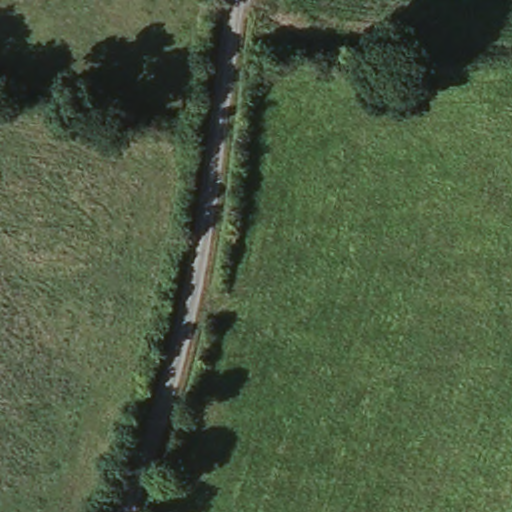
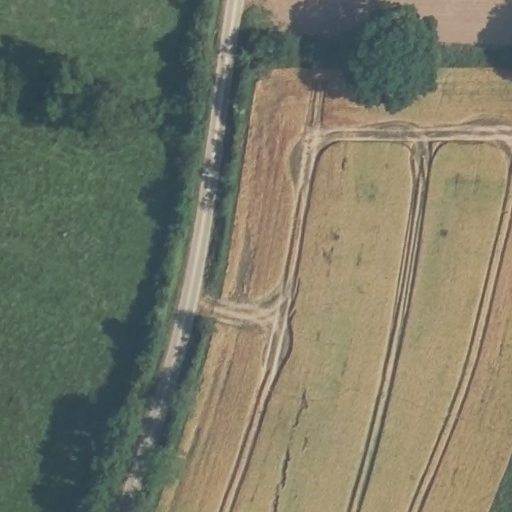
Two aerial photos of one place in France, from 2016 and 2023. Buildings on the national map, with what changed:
[]

